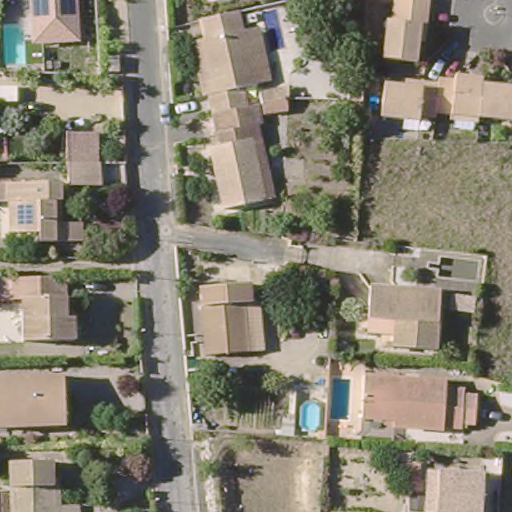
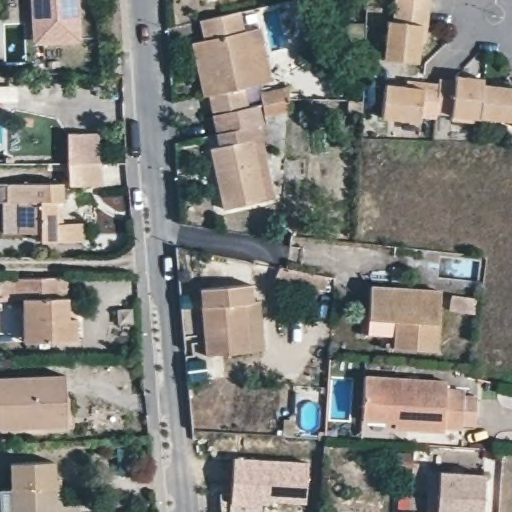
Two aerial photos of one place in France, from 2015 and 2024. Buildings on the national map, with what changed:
unchanged [(35,40),(32,0),(81,0),(84,39),(35,40)]
unchanged [(426,0),(425,5),(391,3),(391,0),(426,0)]
unchanged [(424,23),(418,23),(415,59),(380,56),(385,18),(390,19),(391,3),(425,5),(424,23)]
unchanged [(237,109),(200,119),(197,99),(202,95),(190,45),(198,44),(192,21),(229,13),(232,28),(234,38),(242,81),(235,83),(237,109)]
unchanged [(482,71),(482,81),(479,116),(450,113),(451,109),(435,106),(438,73),(454,74),(455,69),(482,71)]
unchanged [(435,106),(419,105),(418,110),(380,106),(382,73),(420,76),(420,70),(438,73),(435,106)]
unchanged [(479,116),(482,81),(512,85),(512,125),(477,122),(479,116)]
unchanged [(274,119),(259,120),(255,107),(274,103),(274,119)]
unchanged [(212,208),(201,154),(209,151),(200,119),(237,109),(249,108),(254,132),(244,134),(242,139),(259,199),(212,208)]
unchanged [(66,168),(67,138),(97,139),(97,169),(98,189),(65,188),(64,168),(66,168)]
unchanged [(50,247),(32,246),(33,237),(12,237),(12,203),(4,203),(0,203),(0,185),(58,185),(58,205),(49,205),(50,227),(74,227),(74,247),(50,247)]
unchanged [(0,298),(15,297),(14,274),(35,275),(69,274),(74,278),(76,300),(85,300),(86,335),(27,337),(0,337),(0,298)]
unchanged [(259,346),(202,352),(192,286),(251,279),(259,346)]
unchanged [(367,284),(442,289),(437,344),(392,342),(393,324),(367,323),(367,284)]
unchanged [(472,284),(470,299),(460,301),(449,300),(447,284),(460,284),(472,284)]
unchanged [(476,423),(451,423),(356,417),(357,372),(435,378),(435,384),(452,385),(479,388),(476,423)]
unchanged [(62,397),(62,412),(29,413),(30,425),(0,427),(0,375),(62,374),(62,397)]
new [(232,456),(310,462),(306,504),(262,504),(262,512),(228,512),(232,456)]
unchanged [(6,491),(5,463),(47,461),(50,506),(56,506),(56,512),(0,512),(0,491),(6,491)]
unchanged [(405,509),(422,511),(424,477),(425,466),(435,467),(480,469),(478,512),(405,512),(405,509)]

